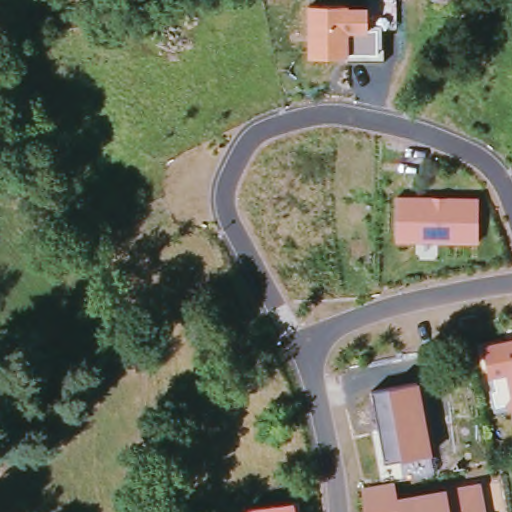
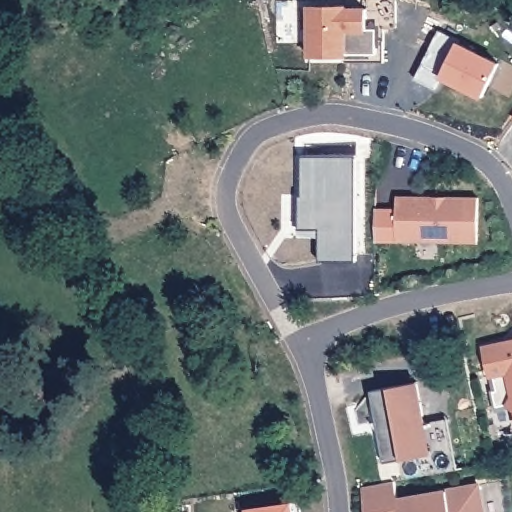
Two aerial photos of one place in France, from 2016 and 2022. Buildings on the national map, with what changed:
unchanged [(84,0),(97,0),(91,6),(84,0)]
unchanged [(465,7),(436,0),(466,0),(465,7)]
unchanged [(367,7),(367,25),(381,26),(382,59),(310,59),(310,7),(367,7)]
new [(457,41),(455,44),(497,64),(481,97),(440,77),(433,90),(413,80),(437,31),(457,41)]
new [(355,264),(316,264),(316,233),(295,233),(295,199),(301,199),(300,159),(353,159),(355,264)]
unchanged [(479,198),(480,245),(396,244),(398,197),(479,198)]
unchanged [(490,378),(485,345),(512,341),(512,399),(507,375),(490,378)]
unchanged [(432,454),(405,462),(405,457),(387,461),(372,389),(390,385),(391,390),(419,382),(432,454)]
unchanged [(512,399),(512,408),(507,405),(512,399)]
unchanged [(393,482),(395,496),(480,480),(487,512),(365,512),(362,487),(393,482)]
unchanged [(295,501),(296,512),(245,512),(245,509),(295,501)]

